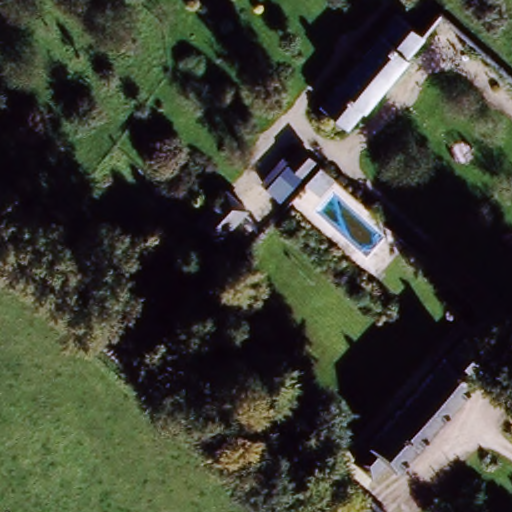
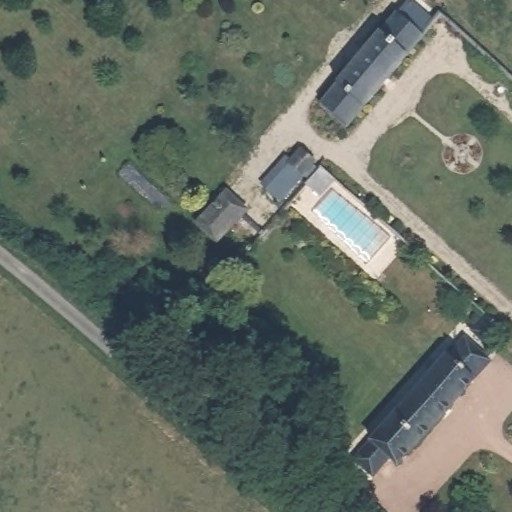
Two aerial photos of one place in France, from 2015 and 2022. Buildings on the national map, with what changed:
unchanged [(390,12),(420,38),(350,132),(317,104),(390,12)]
unchanged [(190,218),(223,191),(250,215),(225,246),(190,218)]
unchanged [(395,458),(371,435),(466,326),(491,351),(395,458)]

